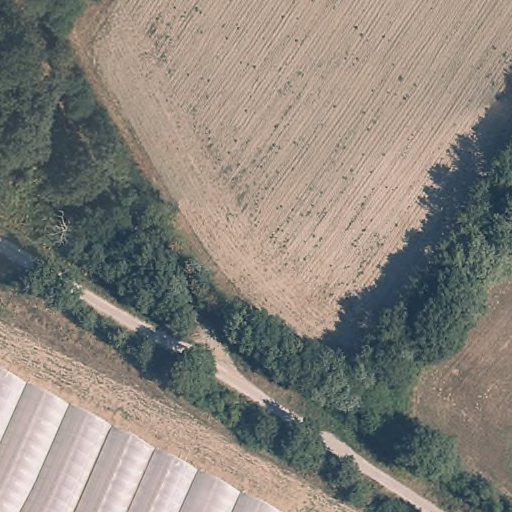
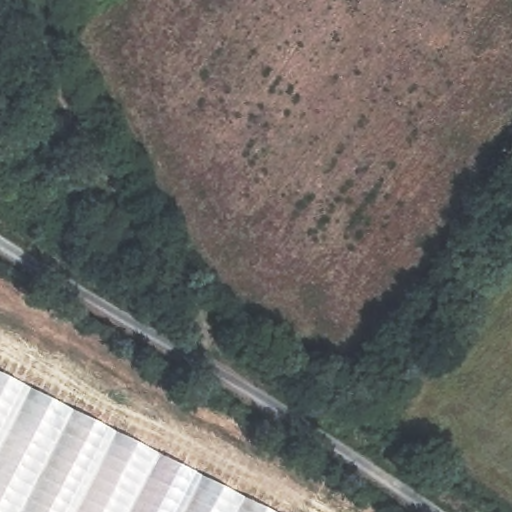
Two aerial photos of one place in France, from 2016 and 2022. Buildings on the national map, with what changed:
unchanged [(0,361),(272,512),(0,512),(0,361)]

